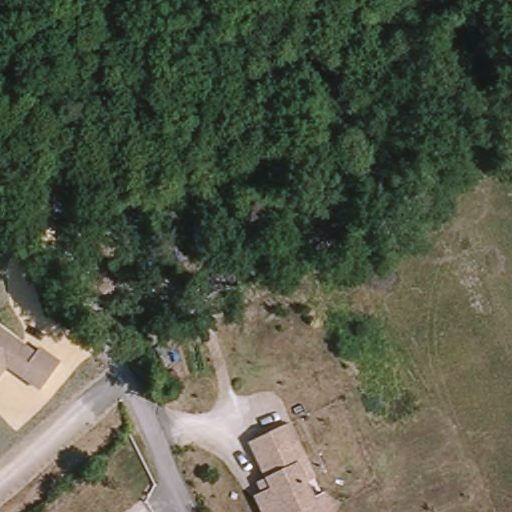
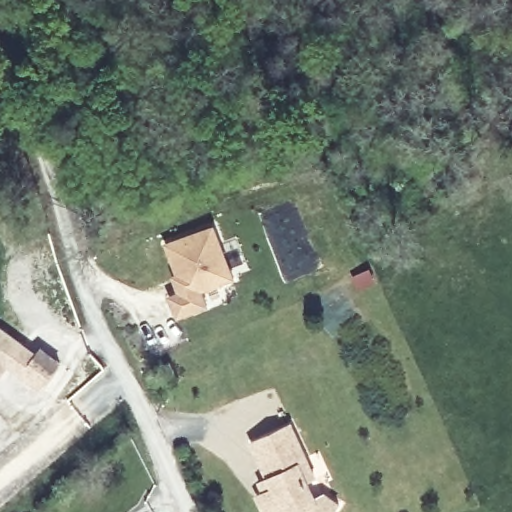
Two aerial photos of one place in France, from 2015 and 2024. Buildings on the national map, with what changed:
new [(171,239),(220,222),(244,291),(180,313),(173,292),(182,289),(176,271),(181,269),(171,239)]
unchanged [(0,370),(0,327),(20,342),(0,370)]
unchanged [(39,347),(56,360),(59,361),(40,387),(30,381),(20,373),(39,347)]
unchanged [(254,437),(292,419),(310,455),(318,473),(310,477),(317,493),(327,489),(343,500),(335,512),(270,512),(260,491),(268,487),(263,477),(271,473),(254,437)]

